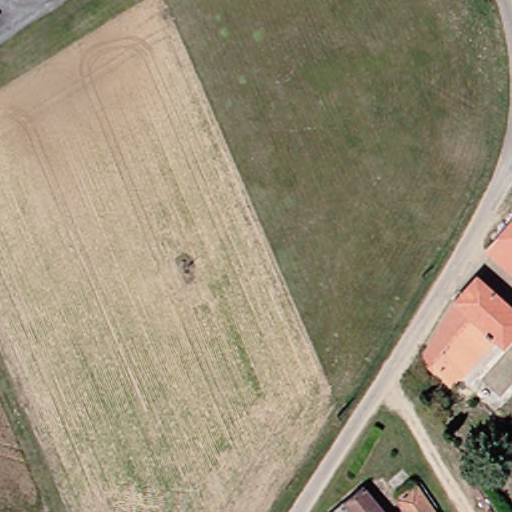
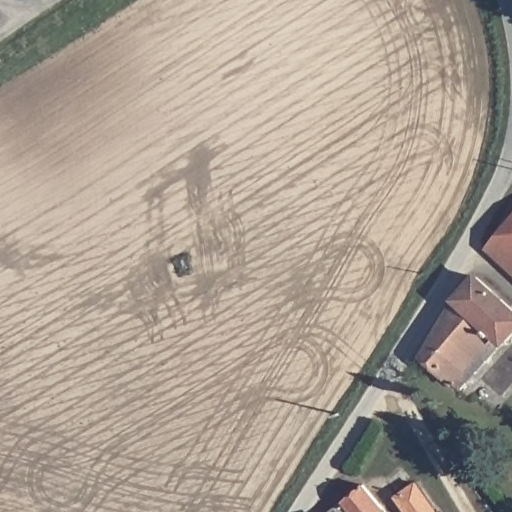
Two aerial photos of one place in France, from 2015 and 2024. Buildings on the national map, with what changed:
unchanged [(512,218),(512,272),(485,248),(512,218)]
unchanged [(421,354),(453,301),(476,276),(512,310),(512,330),(496,348),(464,383),(459,388),(421,354)]
unchanged [(428,483),(447,512),(415,512),(406,498),(428,483)]
unchanged [(386,512),(333,512),(364,486),(386,512)]

